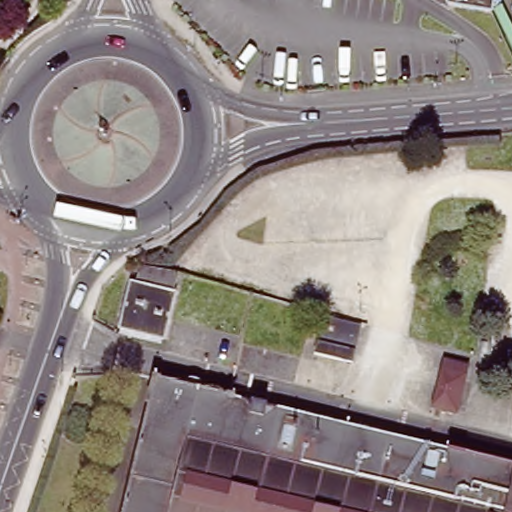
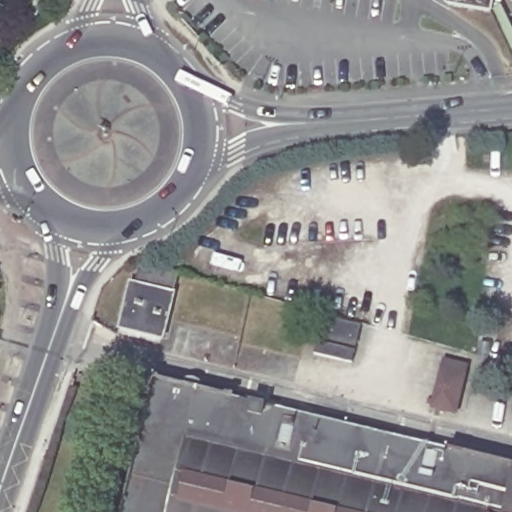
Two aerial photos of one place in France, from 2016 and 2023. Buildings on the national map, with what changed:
unchanged [(447,5),(447,0),(493,0),(491,11),(447,5)]
unchanged [(176,270),(177,270),(163,335),(123,325),(137,263),(176,270)]
unchanged [(359,325),(351,362),(315,354),(323,317),(359,325)]
unchanged [(467,365),(457,414),(432,408),(444,359),(467,365)]
unchanged [(155,382),(512,471),(512,512),(123,512),(155,382)]

